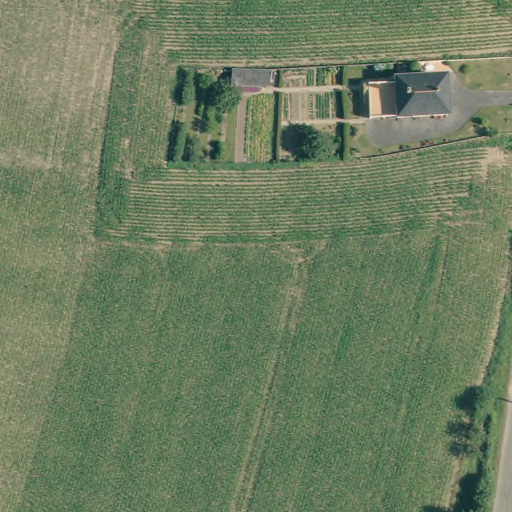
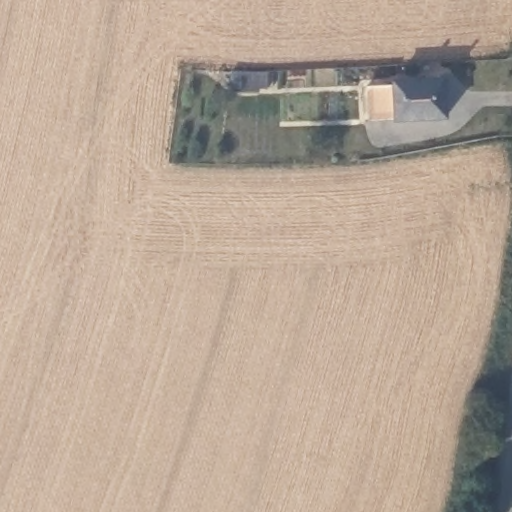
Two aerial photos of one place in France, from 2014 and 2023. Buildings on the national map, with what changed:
unchanged [(262,78),(262,92),(239,90),(239,77),(262,78)]
unchanged [(402,81),(402,78),(450,78),(450,115),(373,116),(372,81),(402,81)]

